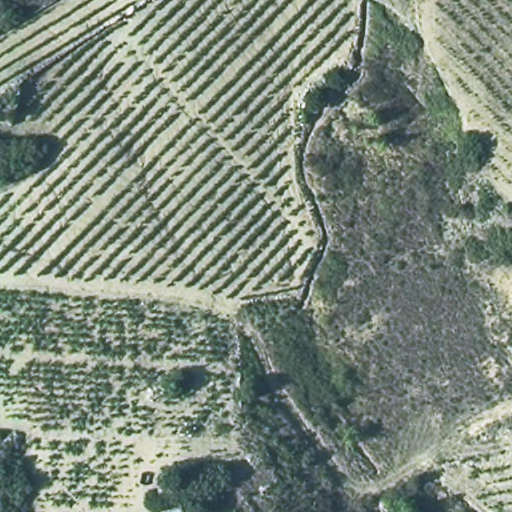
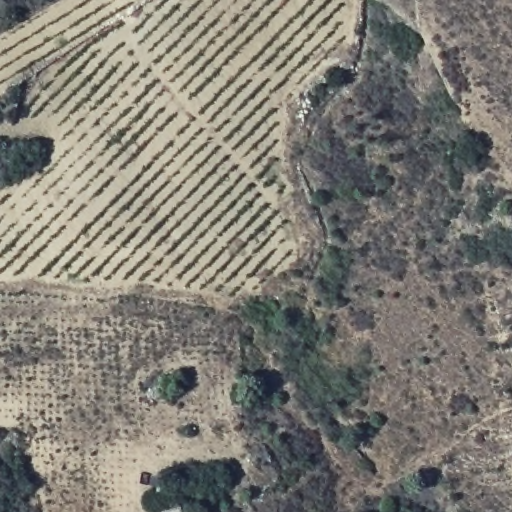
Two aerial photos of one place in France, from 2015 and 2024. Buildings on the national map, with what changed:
unchanged [(187,512),(160,512),(160,510),(186,504),(187,512)]

